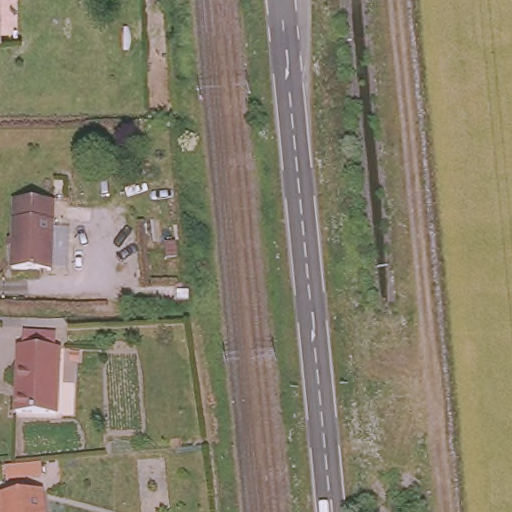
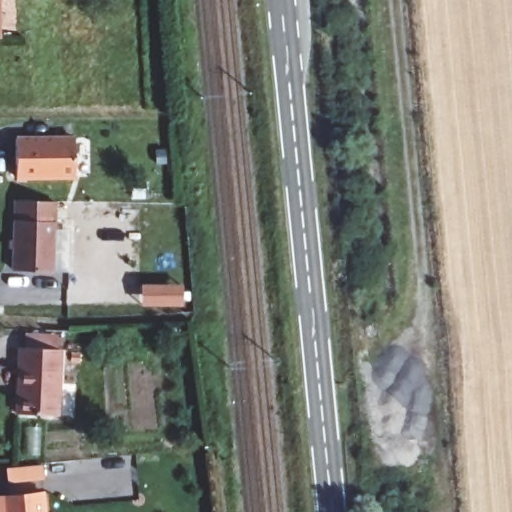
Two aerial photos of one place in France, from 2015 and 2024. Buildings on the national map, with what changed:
new [(75,135),(76,172),(18,174),(18,136),(75,135)]
unchanged [(12,201),(52,202),(51,270),(12,270),(12,201)]
new [(58,334),(56,348),(23,347),(24,332),(58,334)]
unchanged [(20,347),(60,349),(57,415),(17,413),(20,347)]
unchanged [(5,465),(40,462),(41,477),(6,480),(5,465)]
unchanged [(52,512),(5,512),(3,495),(51,492),(52,512)]

